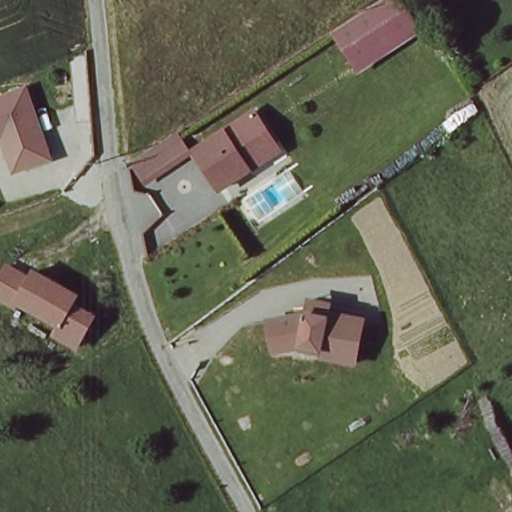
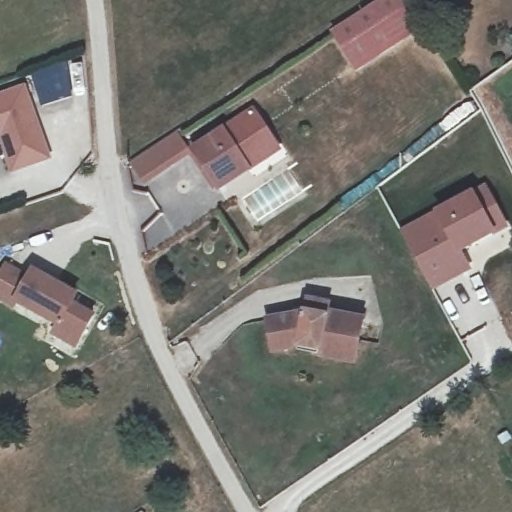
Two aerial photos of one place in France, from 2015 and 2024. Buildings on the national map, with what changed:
unchanged [(380,0),(401,0),(415,22),(352,63),(331,32),(380,0)]
unchanged [(11,176),(0,143),(0,93),(24,84),(53,159),(11,176)]
unchanged [(245,164),(216,184),(191,146),(250,107),(270,138),(275,144),(245,164)]
unchanged [(170,132),(188,159),(141,190),(124,163),(170,132)]
new [(434,213),(473,191),(485,186),(508,229),(493,235),(463,253),(473,271),(432,292),(400,230),(434,213)]
unchanged [(80,353),(50,339),(56,327),(17,307),(14,313),(0,306),(0,266),(2,261),(30,274),(35,267),(84,292),(78,303),(96,312),(80,353)]
unchanged [(298,312),(320,316),(321,311),(358,318),(350,361),(313,354),(314,349),(294,345),(268,350),(262,319),(298,312)]

